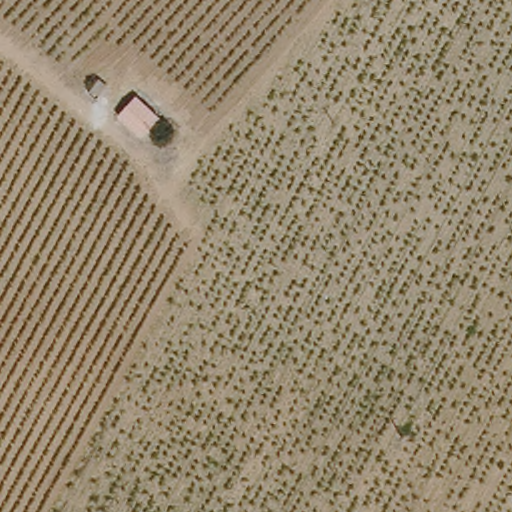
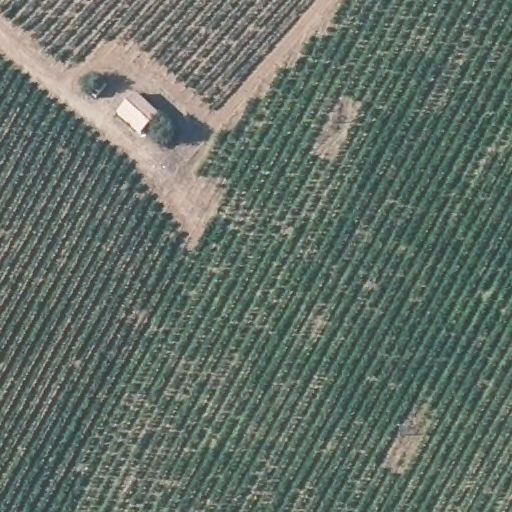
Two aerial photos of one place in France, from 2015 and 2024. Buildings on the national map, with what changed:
unchanged [(110,94),(96,108),(88,99),(101,85),(110,94)]
unchanged [(141,134),(117,110),(136,92),(158,115),(141,134)]

